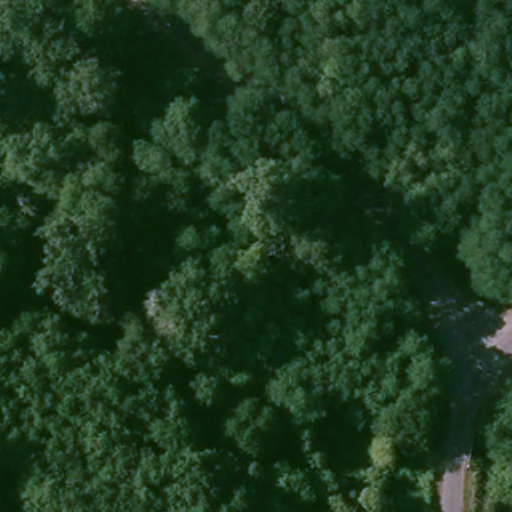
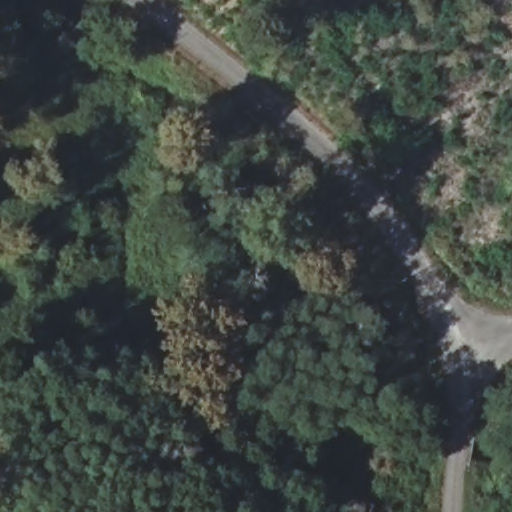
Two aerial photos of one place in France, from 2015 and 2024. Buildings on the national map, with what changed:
[]

